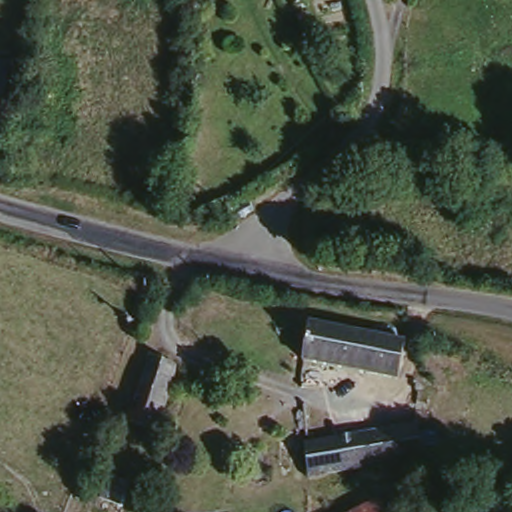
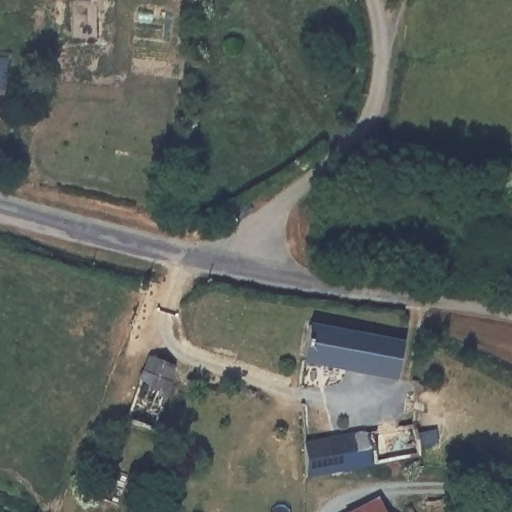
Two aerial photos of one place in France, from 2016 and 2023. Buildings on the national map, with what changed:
new [(7,60),(1,102),(0,102),(0,60),(7,60)]
unchanged [(394,374),(297,357),(303,324),(400,337),(394,374)]
unchanged [(172,366),(148,428),(124,420),(150,358),(172,366)]
unchanged [(418,452),(407,454),(301,469),(297,438),(412,420),(418,452)]
unchanged [(386,512),(372,512),(382,506),(386,512)]

